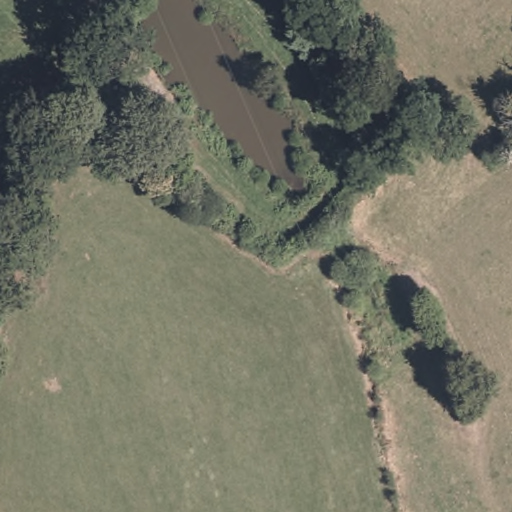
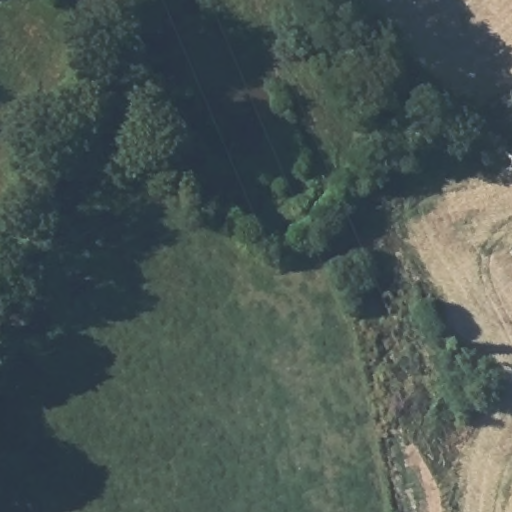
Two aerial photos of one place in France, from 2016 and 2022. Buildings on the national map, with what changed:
[]

